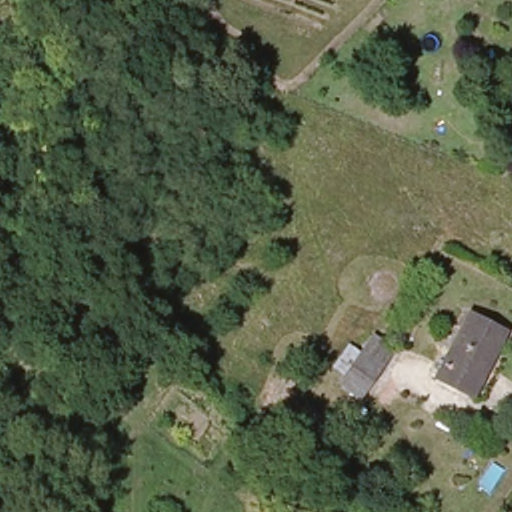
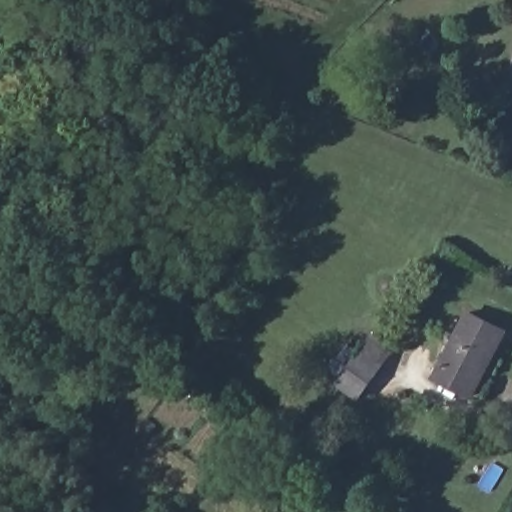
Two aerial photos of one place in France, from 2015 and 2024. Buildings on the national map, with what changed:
unchanged [(436,373),(472,308),(508,327),(474,390),(473,393),(440,375),(436,373)]
unchanged [(359,399),(335,384),(341,373),(332,367),(347,345),(357,351),(369,335),(391,349),(360,397),(359,399)]

